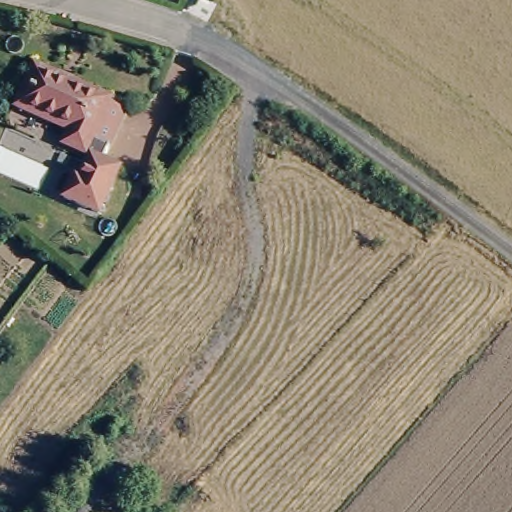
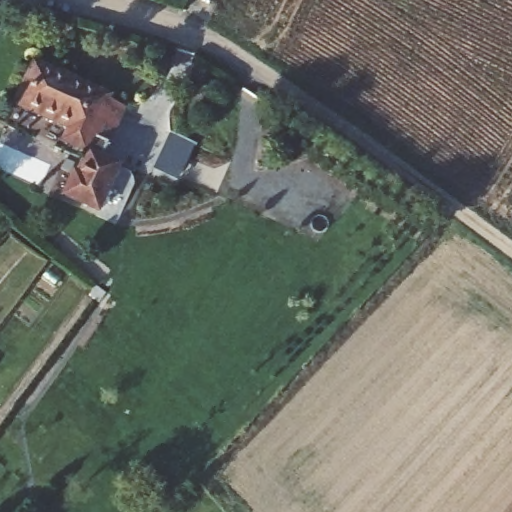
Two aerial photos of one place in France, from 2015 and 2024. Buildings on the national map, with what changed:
unchanged [(32,63),(107,94),(105,99),(120,105),(105,141),(90,136),(84,150),(65,142),(70,126),(14,103),(32,63)]
new [(170,131),(195,146),(175,181),(154,170),(170,131)]
unchanged [(86,146),(90,136),(105,141),(108,143),(102,155),(122,164),(98,216),(62,197),(75,168),(79,170),(87,151),(84,150),(86,146)]

